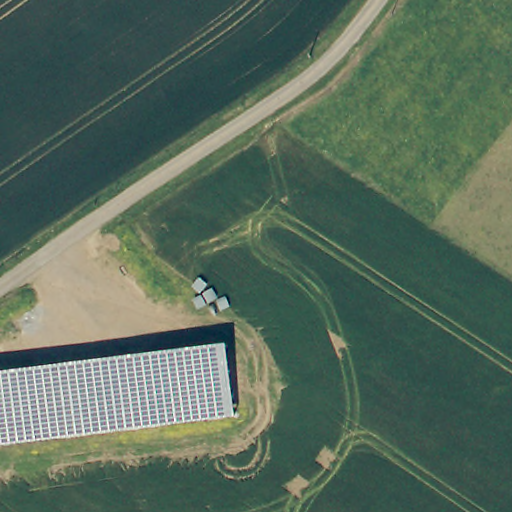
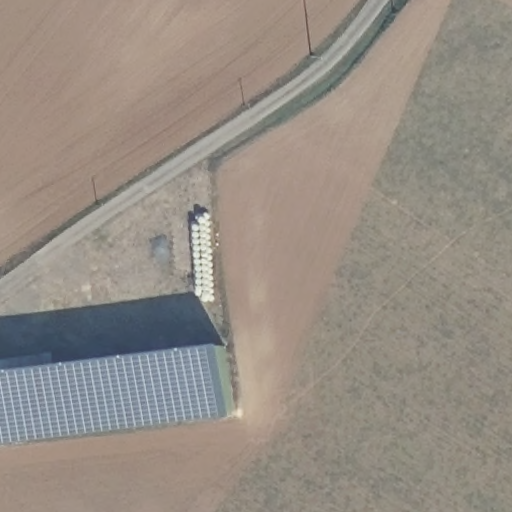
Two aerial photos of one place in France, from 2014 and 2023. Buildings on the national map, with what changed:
unchanged [(225,346),(234,417),(0,446),(0,375),(225,346)]

